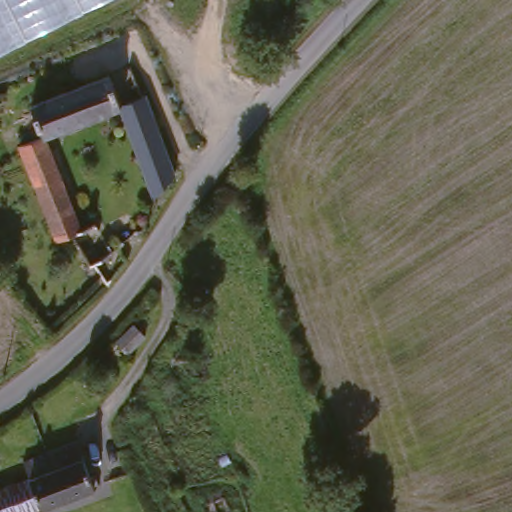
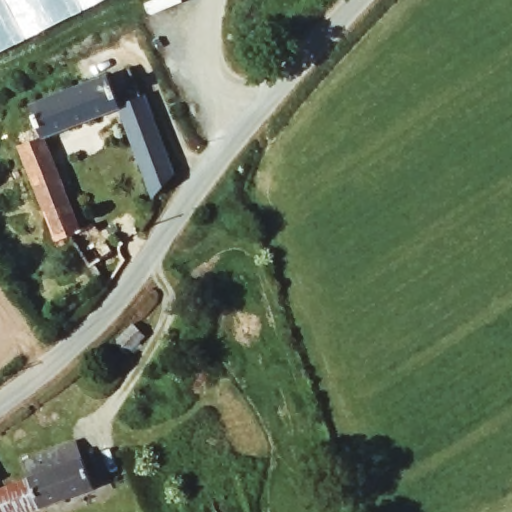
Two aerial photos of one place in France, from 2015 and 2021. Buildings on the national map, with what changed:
unchanged [(104,0),(0,52),(0,0),(104,0)]
unchanged [(126,108),(49,137),(36,106),(136,68),(146,96),(148,95),(179,175),(160,195),(126,108)]
unchanged [(49,137),(85,230),(86,233),(74,237),(61,242),(24,146),(49,137)]
unchanged [(116,342),(133,325),(145,337),(127,354),(116,342)]
unchanged [(1,494),(34,484),(28,466),(81,447),(98,493),(47,512),(0,512),(0,491),(1,494)]

